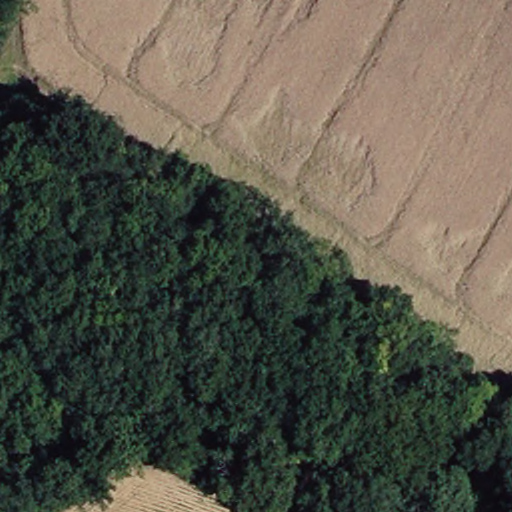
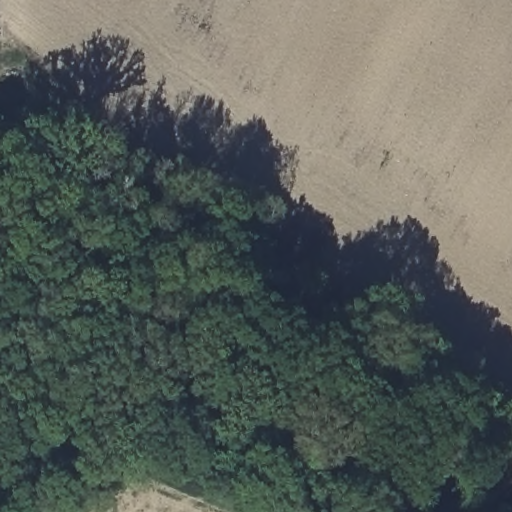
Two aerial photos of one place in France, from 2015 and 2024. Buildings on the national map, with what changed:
[]

